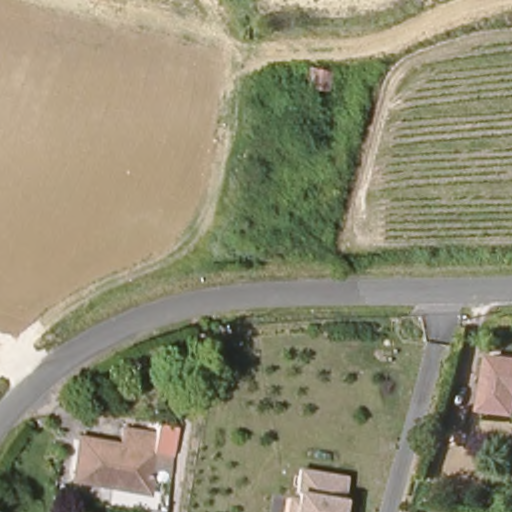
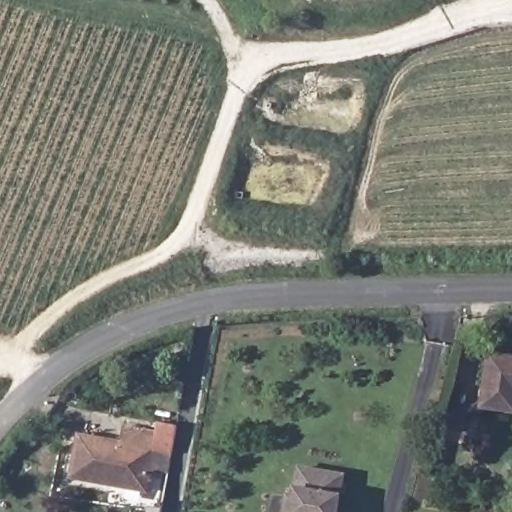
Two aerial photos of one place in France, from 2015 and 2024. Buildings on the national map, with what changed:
unchanged [(512,353),(512,405),(481,402),(489,351),(512,353)]
unchanged [(119,486),(73,480),(81,439),(120,445),(124,426),(159,431),(160,425),(176,428),(173,451),(152,450),(147,481),(146,491),(119,486)]
unchanged [(292,490),(298,465),(343,472),(341,493),(338,512),(282,512),(285,489),(292,490)]

